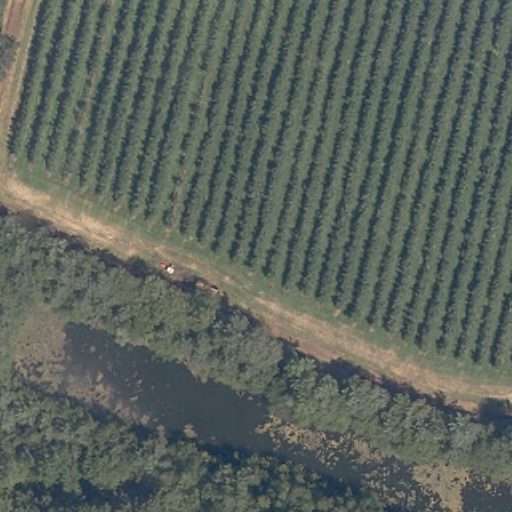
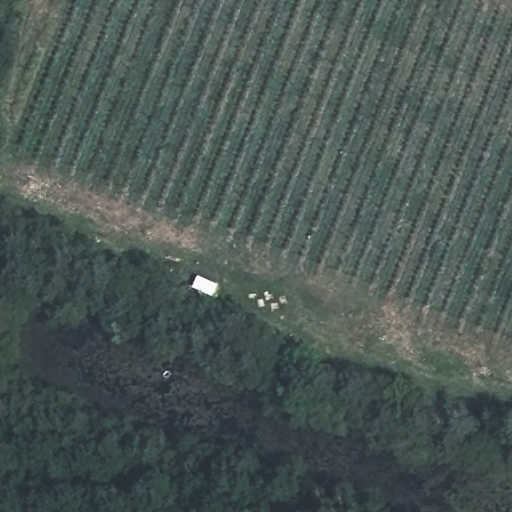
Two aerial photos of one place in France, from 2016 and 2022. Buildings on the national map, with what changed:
unchanged [(221,286),(214,296),(195,289),(200,277),(221,286)]

